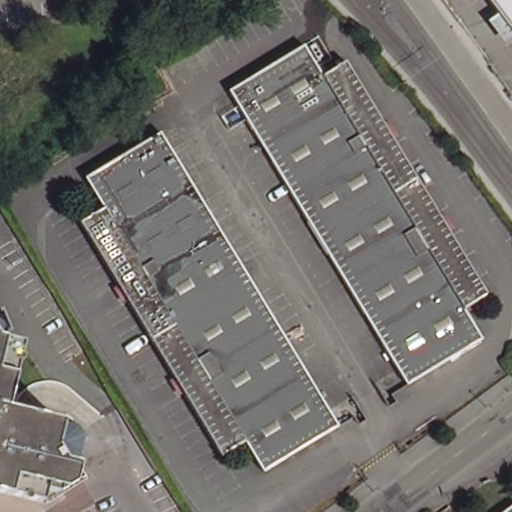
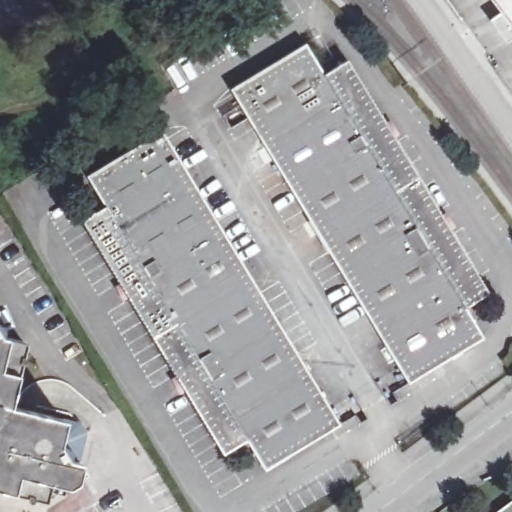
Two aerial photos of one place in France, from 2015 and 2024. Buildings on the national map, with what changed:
unchanged [(504,11),(495,0),(512,0),(512,22),(504,11)]
unchanged [(232,93),(308,48),(327,78),(350,63),(490,298),(467,312),(485,342),(410,386),(232,93)]
unchanged [(266,474),(247,443),(225,456),(86,223),(107,209),(89,179),(164,134),(341,428),(266,474)]
unchanged [(4,329),(3,335),(27,341),(12,404),(86,424),(90,434),(86,451),(83,463),(79,481),(68,487),(52,484),(47,500),(0,489),(0,322),(1,322),(4,329)]
unchanged [(512,506),(512,512),(504,512),(512,506)]

